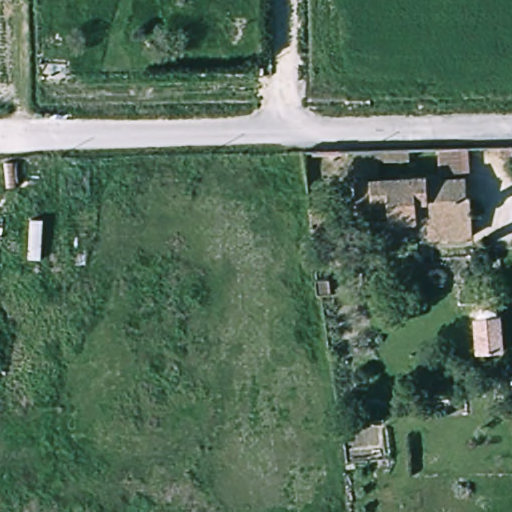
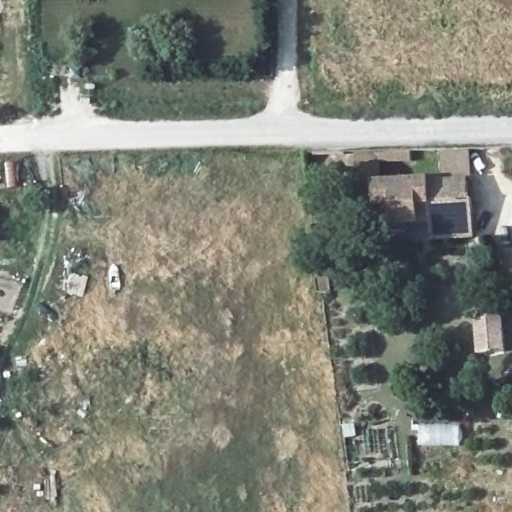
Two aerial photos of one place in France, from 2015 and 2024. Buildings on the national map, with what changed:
unchanged [(445,225),(444,211),(443,201),(430,201),(430,206),(386,207),(386,217),(368,216),(368,189),(369,161),(455,158),(457,163),(475,163),(475,181),(486,181),(486,209),(486,223),(445,225)]
unchanged [(331,205),(338,297),(318,298),(311,206),(331,205)]
unchanged [(505,351),(476,356),(474,318),(501,317),(505,351)]

